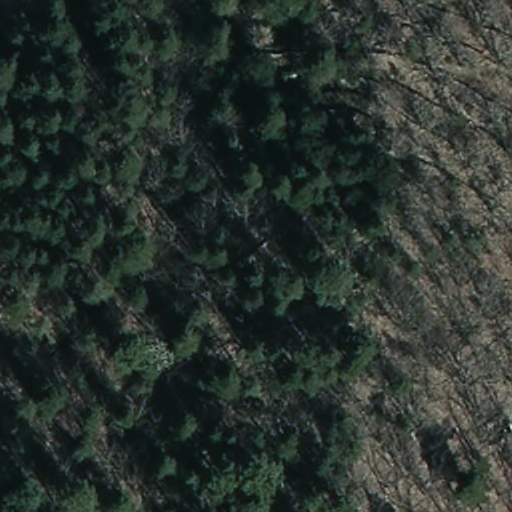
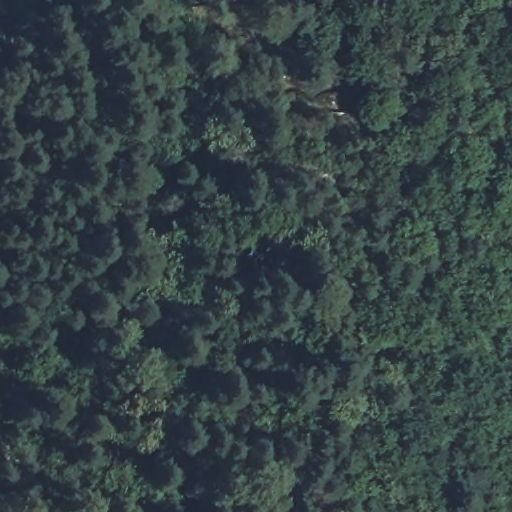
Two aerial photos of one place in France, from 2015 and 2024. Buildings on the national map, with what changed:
[]

